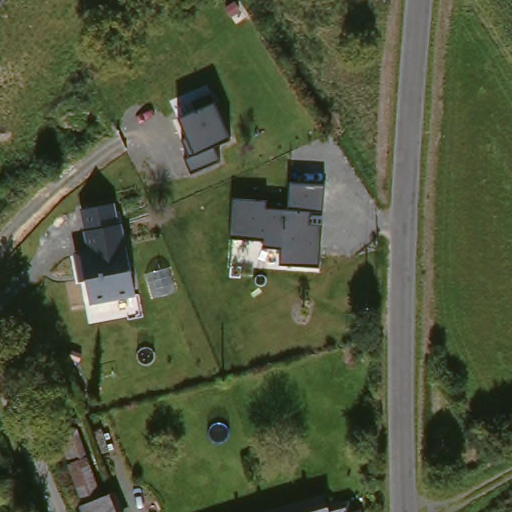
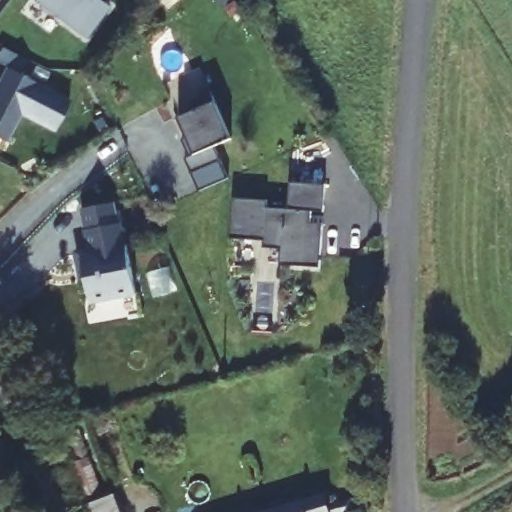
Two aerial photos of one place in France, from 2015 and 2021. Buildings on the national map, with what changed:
new [(87,38),(36,0),(97,0),(108,8),(87,38)]
new [(10,50),(23,56),(16,69),(66,96),(50,126),(17,109),(1,137),(0,136),(0,67),(3,62),(10,50)]
unchanged [(191,175),(183,159),(194,154),(178,119),(214,103),(228,139),(212,146),(219,162),(191,175)]
unchanged [(265,200),(264,207),(289,209),(291,183),(324,186),(323,215),(313,215),(313,225),(321,226),(318,266),(280,264),(280,249),(263,247),(263,239),(231,236),(233,199),(265,200)]
unchanged [(137,296),(92,306),(86,281),(81,282),(73,253),(89,250),(81,209),(115,203),(137,296)]
unchanged [(78,498),(83,496),(58,432),(79,425),(104,491),(118,486),(128,512),(84,512),(78,498)]
unchanged [(324,493),(328,506),(338,502),(343,512),(264,512),(324,493)]
unchanged [(363,509),(364,512),(352,512),(363,509)]

